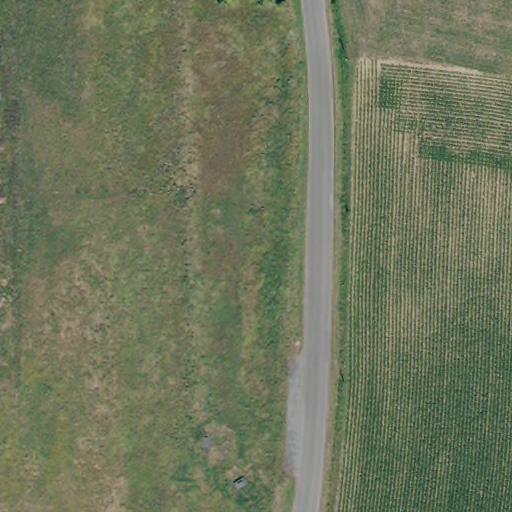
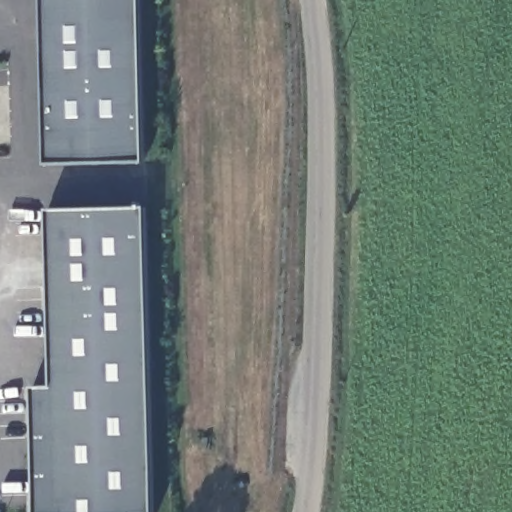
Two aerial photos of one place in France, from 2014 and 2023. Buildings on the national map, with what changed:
new [(141,0),(146,162),(46,164),(42,0),(141,0)]
new [(34,388),(53,387),(49,211),(145,208),(155,512),(36,512),(34,388)]

